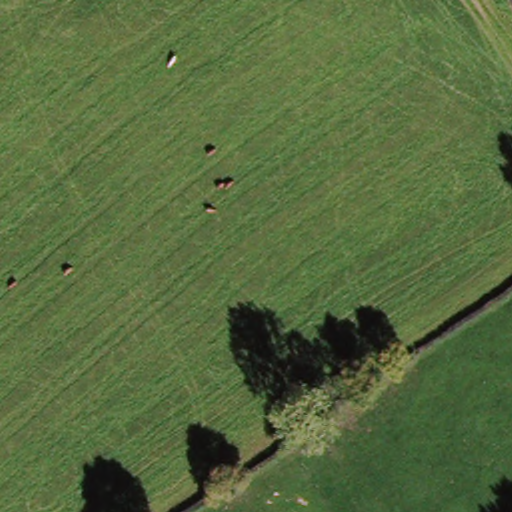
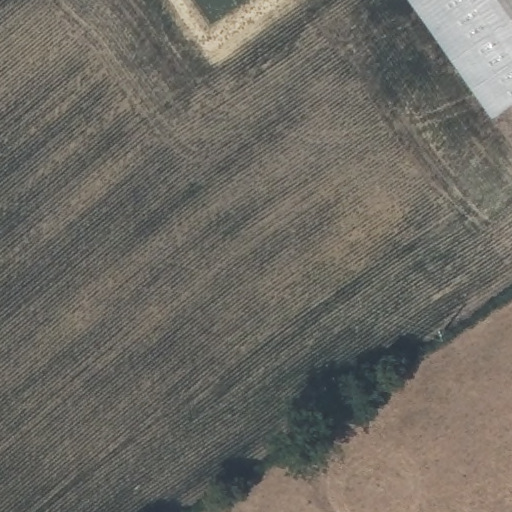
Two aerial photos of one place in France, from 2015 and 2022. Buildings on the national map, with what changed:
new [(512,102),(495,115),(414,0),(506,0),(512,9),(512,102)]
unchanged [(512,0),(512,9),(506,0),(512,0)]

